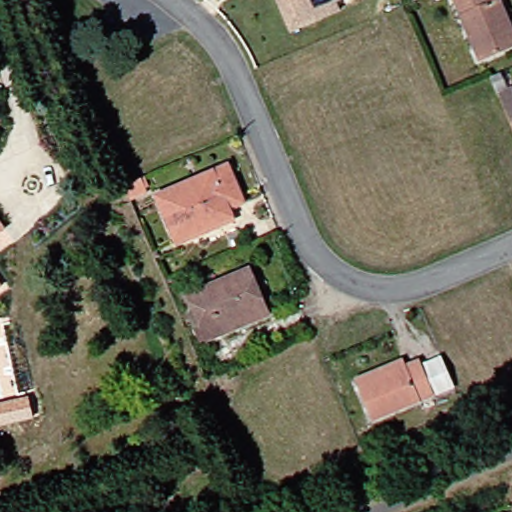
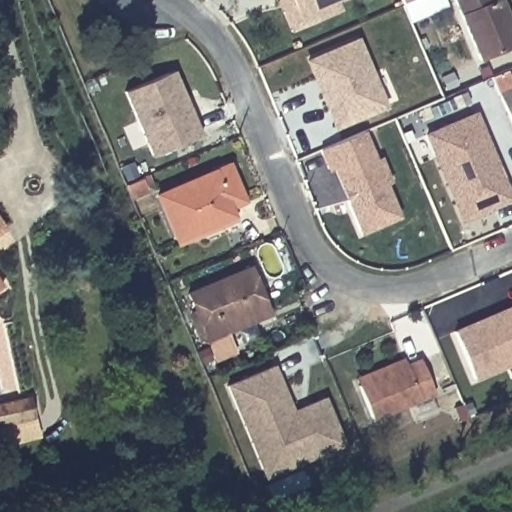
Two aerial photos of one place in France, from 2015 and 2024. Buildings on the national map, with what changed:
unchanged [(282,0),(339,0),(329,4),(333,13),(307,25),(295,30),(282,0)]
new [(404,1),(404,0),(407,0),(404,1)]
unchanged [(512,21),(512,46),(481,58),(456,1),(459,0),(496,0),(496,1),(499,0),(503,0),(512,21)]
new [(311,60),(355,41),(382,107),(333,127),(326,112),(306,62),(311,60)]
new [(176,67),(182,81),(204,132),(155,153),(127,88),(171,69),(176,67)]
unchanged [(512,91),(512,116),(503,95),(512,91)]
new [(486,135),(497,161),(512,196),(464,216),(437,154),(428,131),(442,125),(476,111),(486,135)]
new [(335,166),(329,169),(320,149),(363,131),(375,159),(381,157),(390,179),(385,182),(399,214),(362,230),(349,199),(344,188),(335,166)]
unchanged [(203,229),(177,240),(158,194),(230,165),(245,201),(229,207),(234,217),(203,229)]
unchanged [(142,176),(147,188),(129,195),(125,183),(142,176)]
unchanged [(10,227),(0,235),(0,213),(10,227)]
unchanged [(223,333),(207,340),(188,293),(250,267),(268,309),(270,314),(223,333)]
unchanged [(2,289),(0,291),(0,272),(9,284),(2,289)]
new [(512,362),(478,376),(458,329),(512,306),(512,362)]
unchanged [(449,394),(388,420),(374,384),(371,378),(418,359),(420,365),(434,359),(449,394)]
new [(292,411),(323,398),(329,412),(343,445),(301,462),(294,447),(280,453),(258,400),(244,406),(234,382),(273,366),(292,411)]
new [(32,418),(0,426),(0,403),(28,396),(32,418)]
new [(258,400),(280,453),(294,447),(301,462),(273,474),(244,406),(258,400)]

